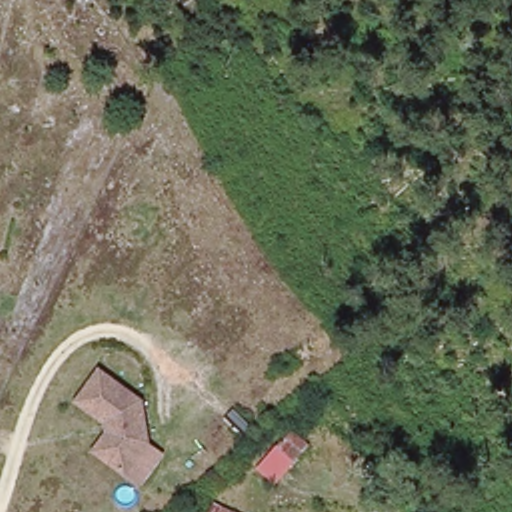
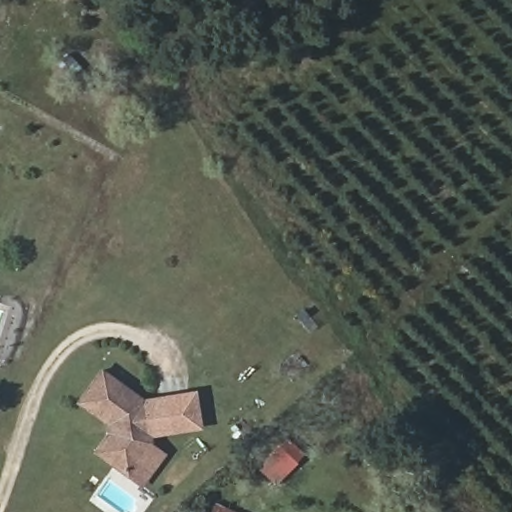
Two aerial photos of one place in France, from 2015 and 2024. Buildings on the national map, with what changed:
unchanged [(106,372),(147,403),(153,445),(130,476),(99,453),(113,435),(112,425),(83,403),(106,372)]
new [(152,435),(147,403),(141,398),(194,388),(200,429),(152,435)]
unchanged [(238,512),(207,512),(213,500),(238,512)]

